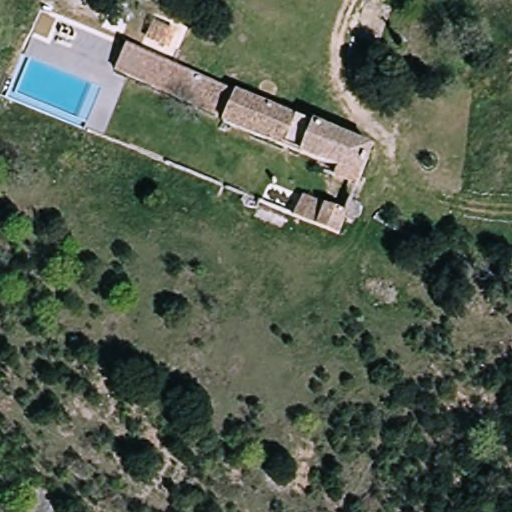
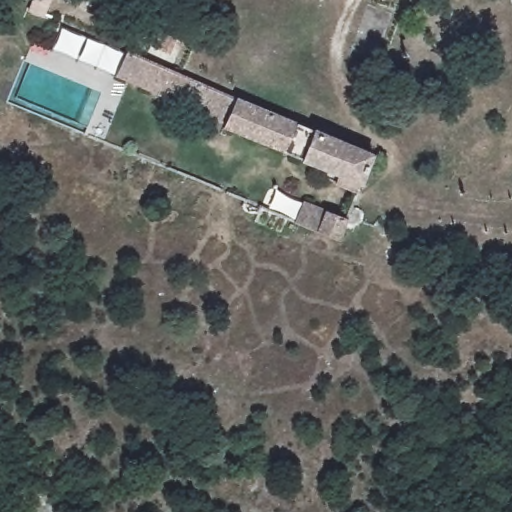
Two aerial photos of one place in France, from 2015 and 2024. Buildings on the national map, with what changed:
unchanged [(178,40),(170,62),(145,48),(153,29),(178,40)]
unchanged [(228,130),(118,86),(121,73),(127,55),(365,152),(373,155),(360,189),(226,136),(228,130)]
unchanged [(303,202),(341,221),(334,238),(295,222),(303,202)]

